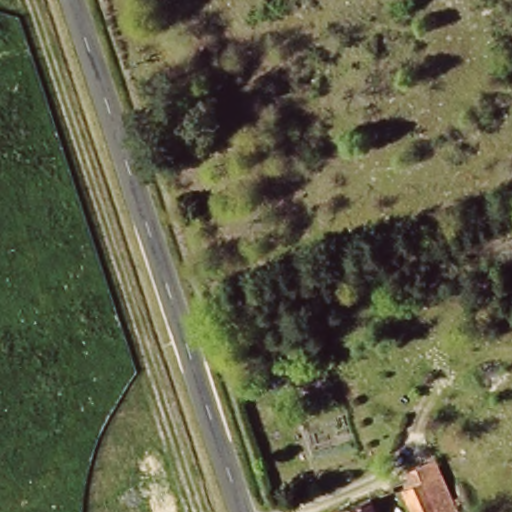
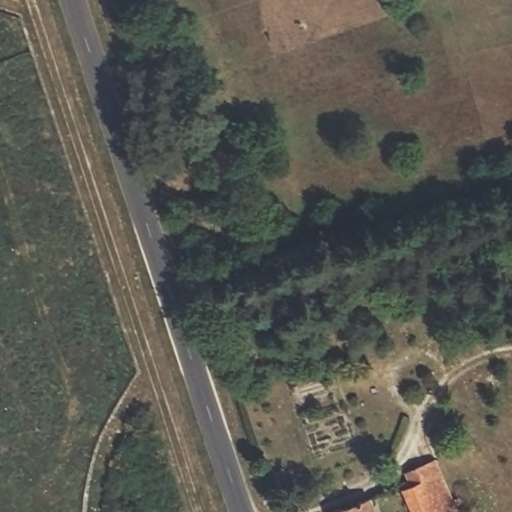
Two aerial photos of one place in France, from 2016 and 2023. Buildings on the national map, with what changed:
unchanged [(512,241),(512,274),(503,244),(512,241)]
unchanged [(418,457),(437,452),(460,512),(440,512),(424,472),(418,457)]
unchanged [(420,512),(407,480),(424,472),(440,512),(420,512)]
unchanged [(382,512),(337,512),(375,496),(382,512)]

